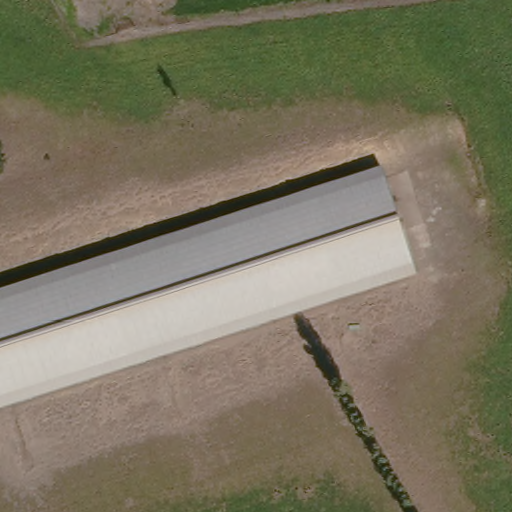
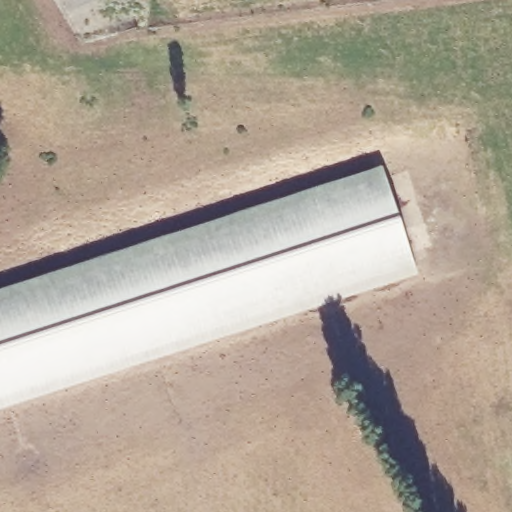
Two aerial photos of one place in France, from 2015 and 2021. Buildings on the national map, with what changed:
unchanged [(0,410),(0,291),(380,169),(416,277),(0,410)]

